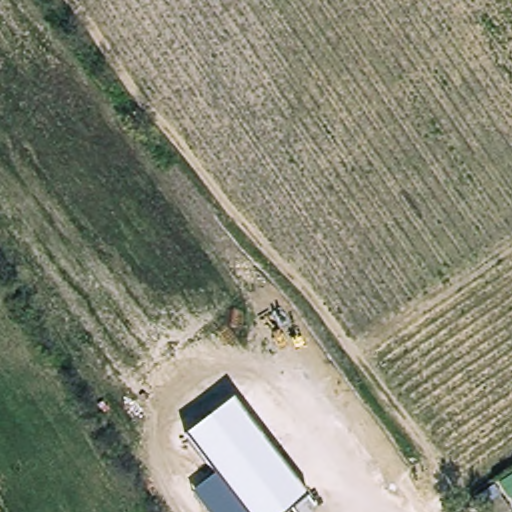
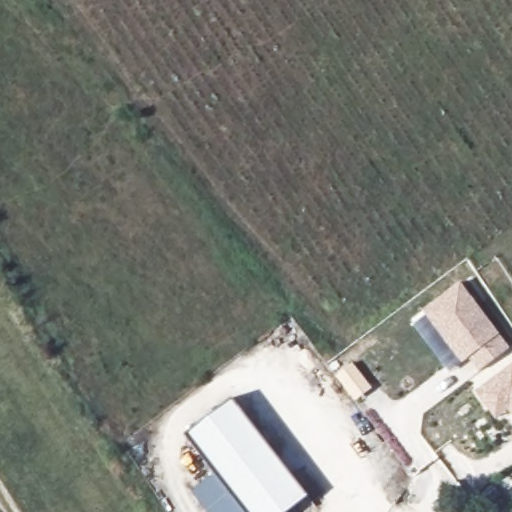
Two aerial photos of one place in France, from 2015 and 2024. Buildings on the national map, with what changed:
new [(469,358),(461,364),(422,311),(460,282),(500,335),(510,348),(479,372),(469,358)]
new [(496,420),(475,392),(512,364),(512,416),(508,411),(496,420)]
unchanged [(187,436),(232,399),(307,492),(283,512),(208,512),(194,492),(217,473),(187,436)]

